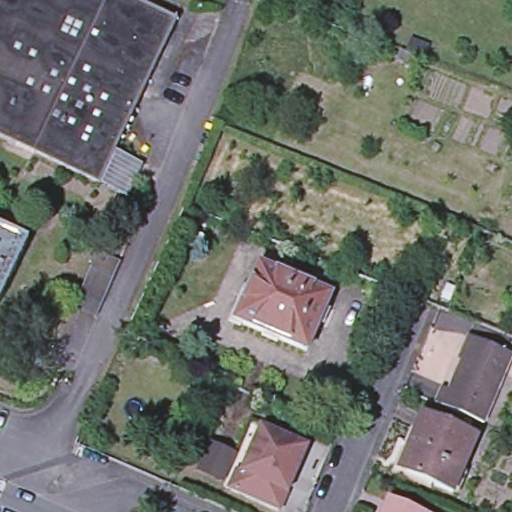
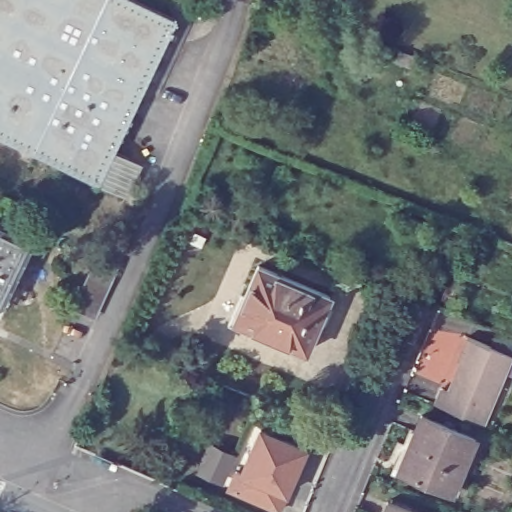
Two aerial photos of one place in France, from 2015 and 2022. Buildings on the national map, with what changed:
unchanged [(0,138),(0,0),(136,0),(177,20),(97,185),(0,138)]
unchanged [(410,39),(427,45),(422,57),(405,51),(410,39)]
unchanged [(0,304),(0,232),(27,245),(0,304)]
unchanged [(73,309),(84,287),(98,254),(122,265),(107,297),(97,319),(73,309)]
unchanged [(260,267),(332,298),(308,353),(237,322),(260,267)]
unchanged [(443,389),(450,392),(472,340),(470,339),(470,338),(512,356),(512,363),(485,426),(436,405),(443,389)]
unchanged [(410,445),(422,417),(475,440),(450,496),(405,475),(398,472),(410,445)]
unchanged [(307,444),(297,465),(293,463),(282,486),(287,488),(280,506),(228,484),(236,466),(241,468),(261,424),(307,444)]
unchanged [(231,452),(221,474),(202,465),(212,444),(231,452)]
unchanged [(411,512),(383,512),(387,502),(411,512)]

